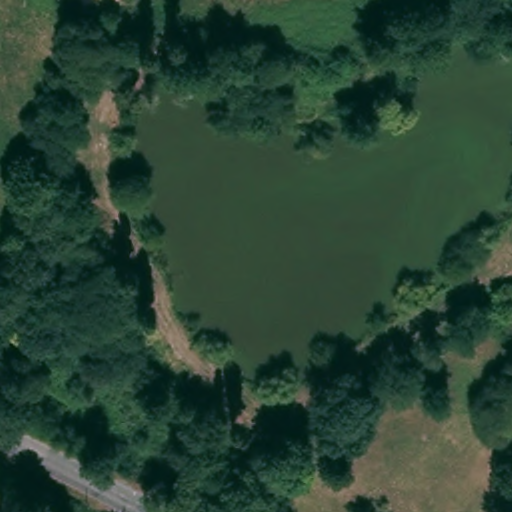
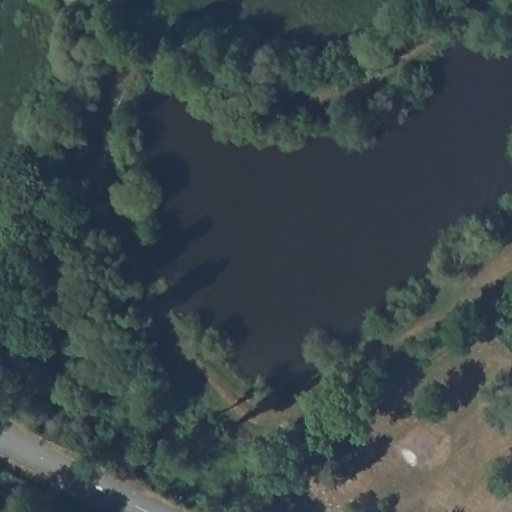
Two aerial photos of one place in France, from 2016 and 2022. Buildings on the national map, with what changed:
[]

